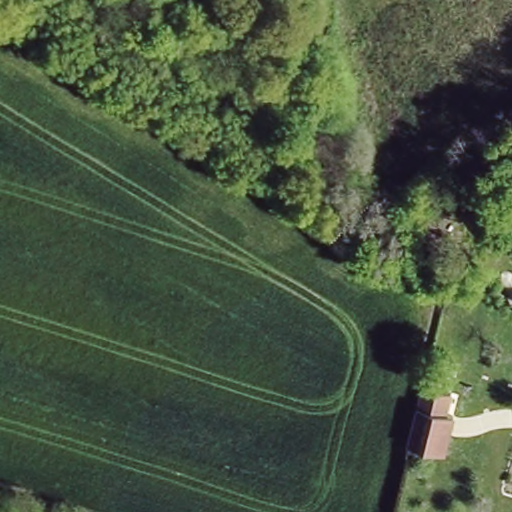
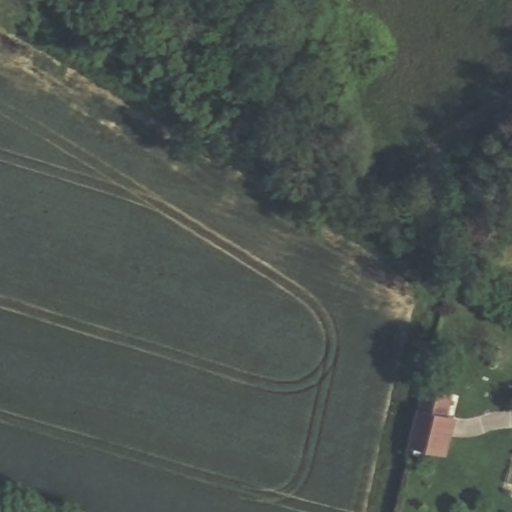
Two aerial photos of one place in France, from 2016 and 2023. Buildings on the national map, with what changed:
unchanged [(475,257),(475,272),(452,272),(455,258),(475,257)]
unchanged [(445,391),(440,412),(447,414),(438,451),(403,443),(417,384),(445,391)]

